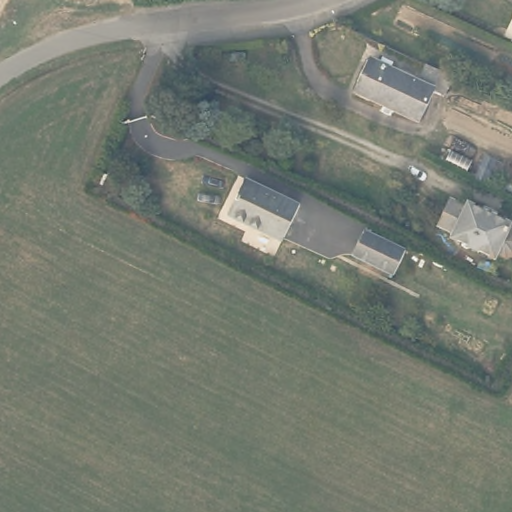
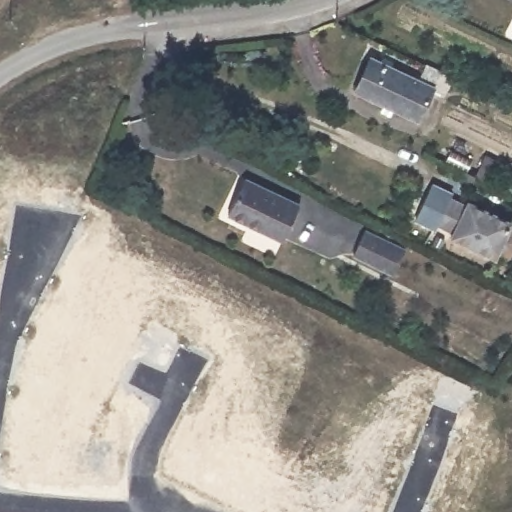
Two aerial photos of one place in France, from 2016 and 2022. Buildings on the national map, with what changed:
unchanged [(512,32),(512,46),(507,44),(512,32)]
unchanged [(376,112),(380,106),(351,92),(366,60),(413,82),(421,65),(436,72),(412,122),(389,111),(386,117),(376,112)]
unchanged [(297,209),(280,245),(224,219),(243,182),(297,209)]
unchanged [(467,199),(509,220),(507,224),(512,227),(512,249),(506,250),(496,245),(494,250),(435,220),(448,195),(464,203),(467,199)]
unchanged [(404,254),(393,277),(353,258),(365,235),(404,254)]
unchanged [(512,394),(512,397),(511,395),(512,394)]

